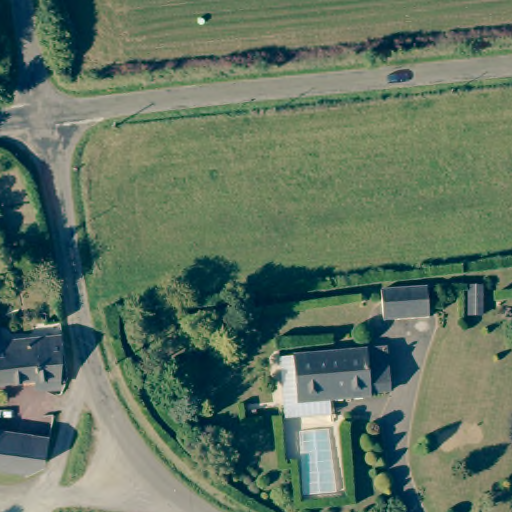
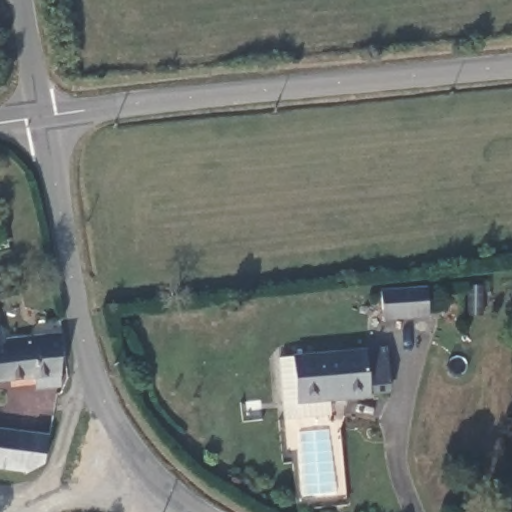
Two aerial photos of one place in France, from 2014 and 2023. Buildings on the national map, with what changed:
unchanged [(425,284),(428,315),(380,319),(378,288),(425,284)]
unchanged [(44,380),(0,382),(0,348),(57,343),(61,377),(59,388),(46,389),(44,380)]
unchanged [(325,401),(326,413),(280,417),(275,357),(381,348),(386,392),(365,393),(365,397),(325,401)]
unchanged [(50,434),(47,450),(21,459),(0,454),(0,432),(50,434)]

